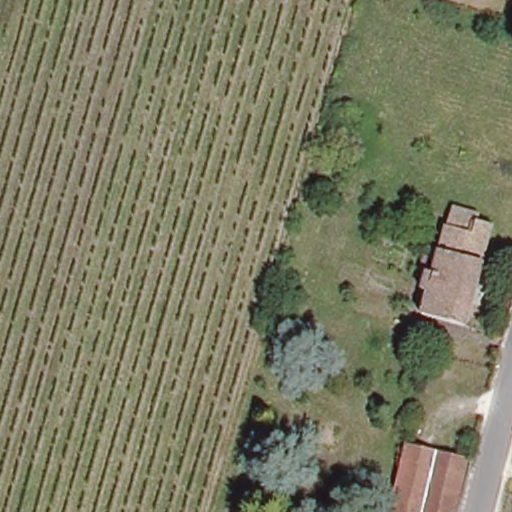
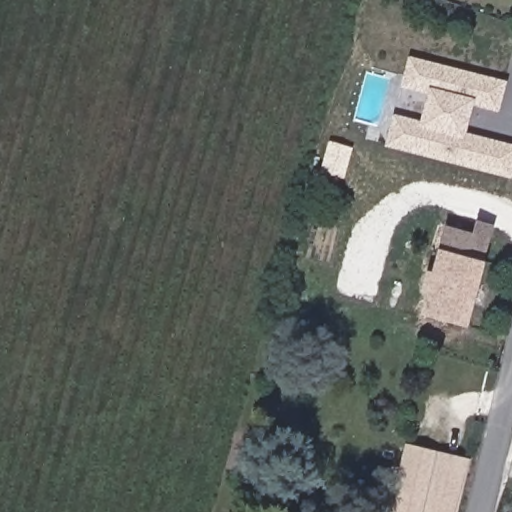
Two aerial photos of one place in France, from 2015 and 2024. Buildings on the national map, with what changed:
new [(472,106),(466,132),(484,139),(512,144),(512,179),(386,141),(393,114),(420,120),(427,94),(403,88),(407,58),(507,84),(500,110),(472,106)]
demolished [(338,161),(326,158),(340,106),(352,111),(338,161)]
unchanged [(464,327),(414,313),(420,290),(416,289),(419,276),(425,277),(442,211),(472,218),(471,222),(491,227),(464,327)]
unchanged [(416,512),(389,512),(380,510),(398,442),(466,457),(451,512),(423,512),(416,511),(416,512)]

